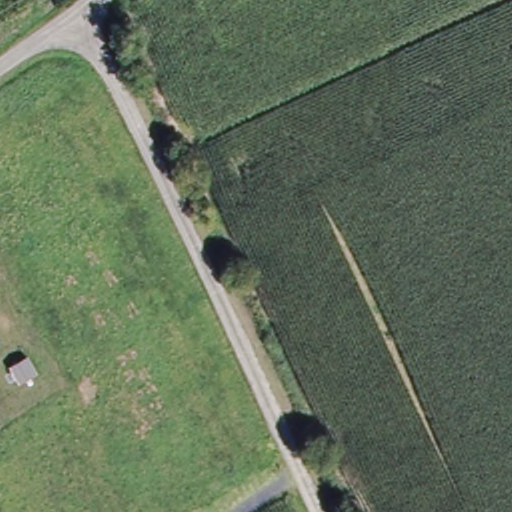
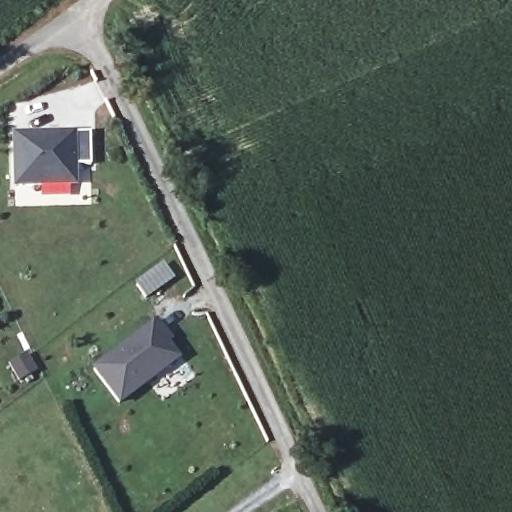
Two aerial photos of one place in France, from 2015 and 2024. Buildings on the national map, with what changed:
new [(51,135),(51,139),(58,139),(58,135),(89,134),(90,167),(74,167),(75,186),(14,187),(13,136),(51,135)]
new [(159,270),(168,282),(145,298),(136,286),(159,270)]
new [(178,361),(120,408),(90,371),(150,325),(156,321),(172,342),(167,346),(178,361)]

